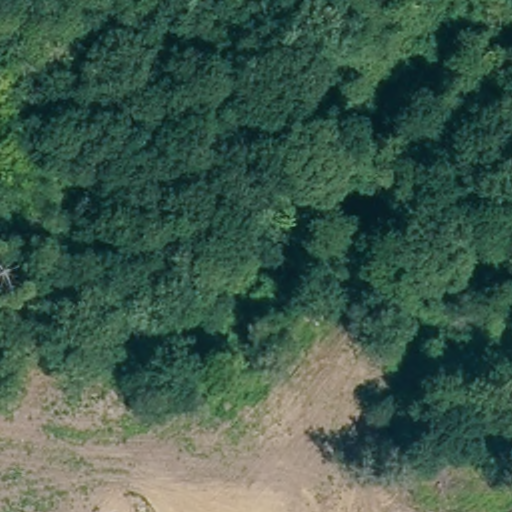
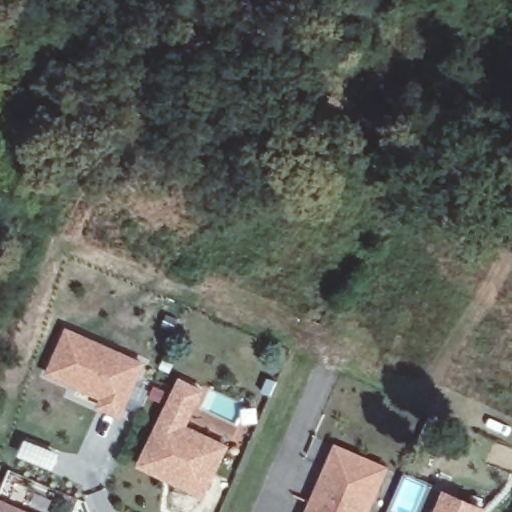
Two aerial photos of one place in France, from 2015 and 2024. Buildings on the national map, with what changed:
new [(146,361),(121,418),(94,408),(99,398),(42,374),(65,327),(146,361)]
new [(135,464),(176,378),(197,388),(176,433),(200,444),(204,435),(222,444),(199,493),(181,485),(157,474),(135,464)]
new [(388,466),(369,512),(305,512),(335,443),(388,466)]
new [(442,489),(480,506),(478,512),(432,512),(442,489)]
new [(0,501),(26,512),(0,512),(0,501)]

